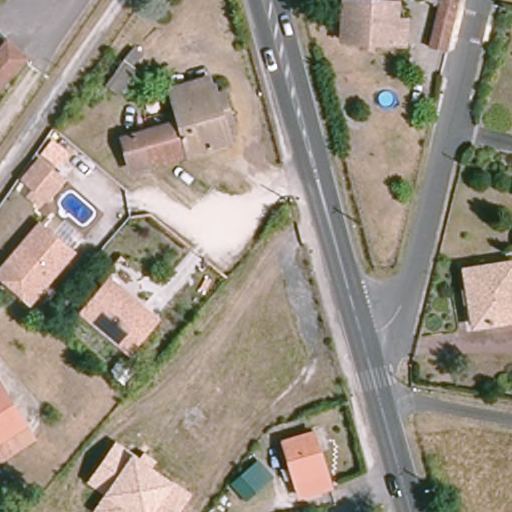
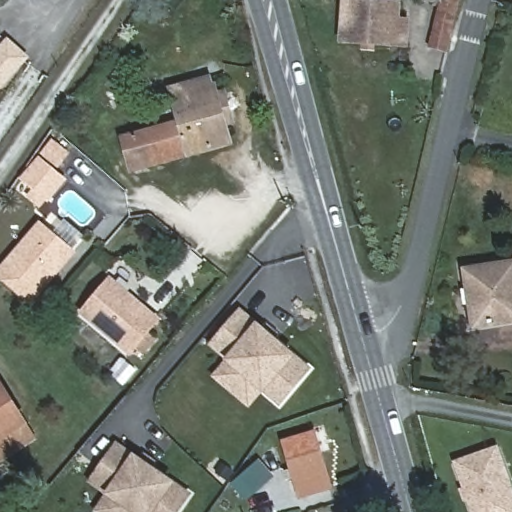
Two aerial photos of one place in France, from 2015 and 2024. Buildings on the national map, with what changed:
unchanged [(399,19),(409,20),(408,44),(344,39),(346,0),(383,0),(400,1),(399,19)]
unchanged [(432,45),(441,0),(460,0),(447,49),(432,45)]
unchanged [(22,60),(21,61),(0,85),(0,50),(4,45),(5,44),(22,60)]
unchanged [(181,125),(173,91),(212,81),(216,98),(226,96),(233,125),(224,127),(229,148),(133,174),(125,141),(181,125)]
unchanged [(40,157),(65,177),(49,197),(24,178),(40,157)]
unchanged [(73,250),(29,302),(0,278),(0,271),(40,223),(73,250)]
unchanged [(512,320),(475,324),(467,268),(512,262),(512,320)]
unchanged [(154,321),(126,353),(80,313),(107,280),(154,321)]
new [(262,391),(247,407),(210,375),(224,359),(207,345),(239,307),(256,321),(263,327),(266,323),(278,334),(275,338),(294,353),(311,367),(278,405),(262,391)]
unchanged [(0,459),(0,379),(27,422),(36,437),(0,459)]
unchanged [(316,432),(331,485),(301,493),(285,439),(316,432)]
unchanged [(180,512),(95,512),(91,509),(103,491),(89,481),(117,441),(138,456),(141,451),(158,463),(154,468),(192,494),(180,512)]
new [(512,500),(512,512),(472,512),(455,465),(494,450),(512,500)]

